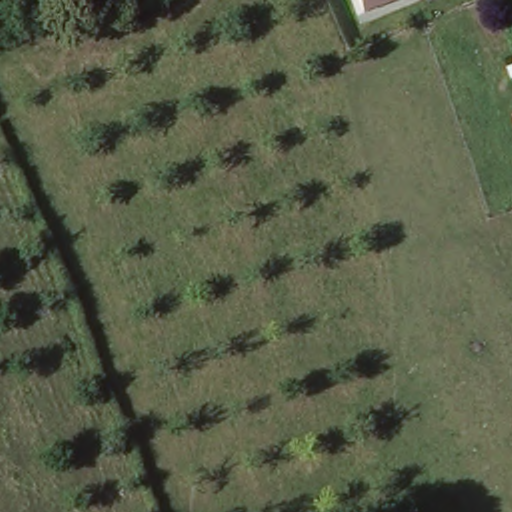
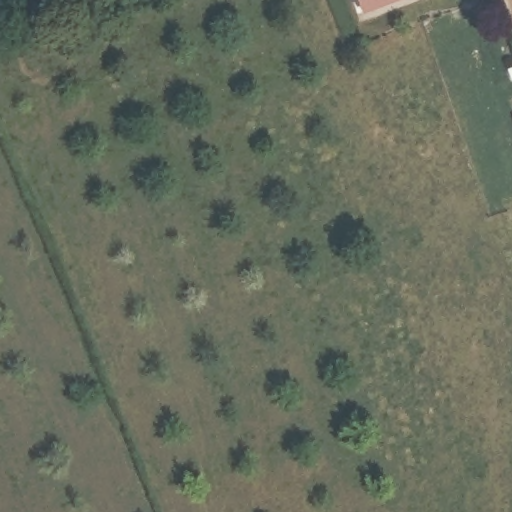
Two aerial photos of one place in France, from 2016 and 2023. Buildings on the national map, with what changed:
unchanged [(363,17),(355,0),(412,0),(363,17)]

